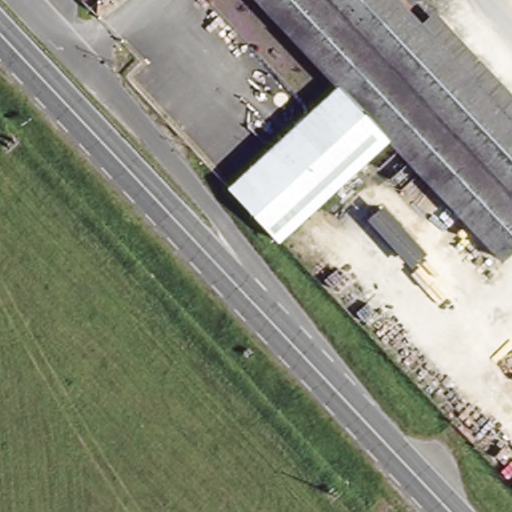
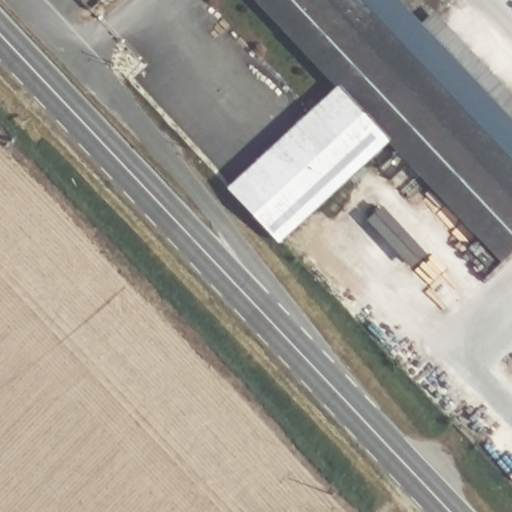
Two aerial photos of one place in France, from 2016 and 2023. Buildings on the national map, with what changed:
unchanged [(264,159),(340,88),(257,0),(402,0),(512,117),(512,243),(498,256),(395,146),(320,217),(264,159)]
unchanged [(294,242),(238,183),(264,159),(320,217),(294,242)]

